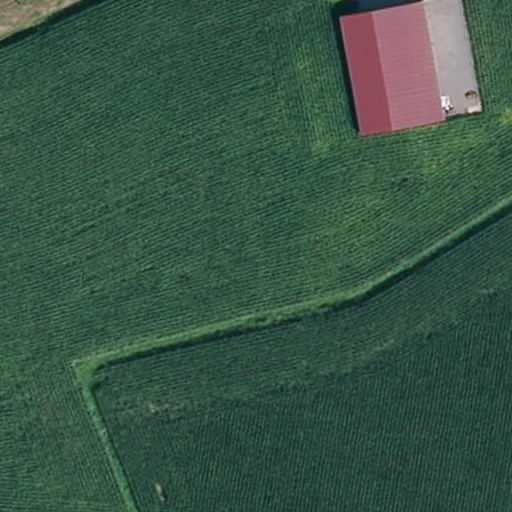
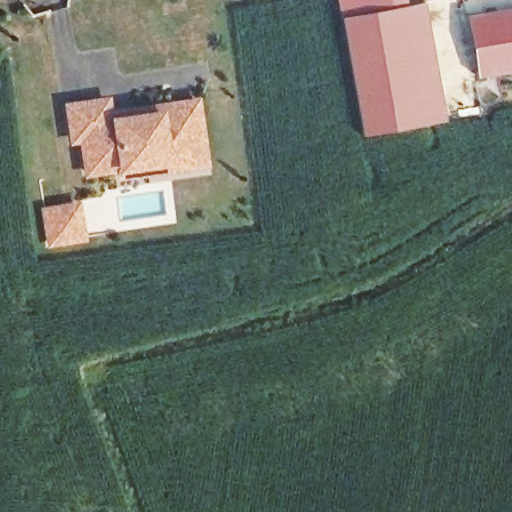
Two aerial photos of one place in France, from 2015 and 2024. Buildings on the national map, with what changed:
new [(404,3),(339,15),(336,0),(404,0),(404,3)]
unchanged [(445,119),(361,135),(339,15),(422,0),(425,0),(445,119)]
new [(512,70),(475,76),(464,15),(512,6),(512,70)]
new [(122,170),(89,174),(85,140),(75,141),(71,106),(110,102),(112,116),(116,115),(134,113),(179,108),(183,136),(186,136),(190,171),(168,173),(123,178),(122,170)]
new [(200,105),(208,168),(190,171),(186,136),(183,136),(179,108),(200,105)]
new [(77,207),(81,231),(82,240),(49,244),(45,211),(62,209),(77,207)]

